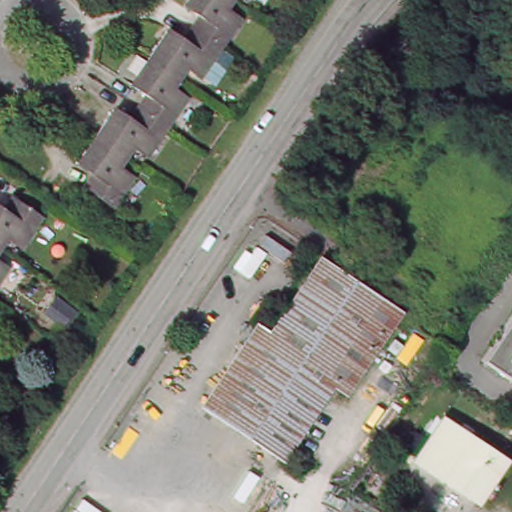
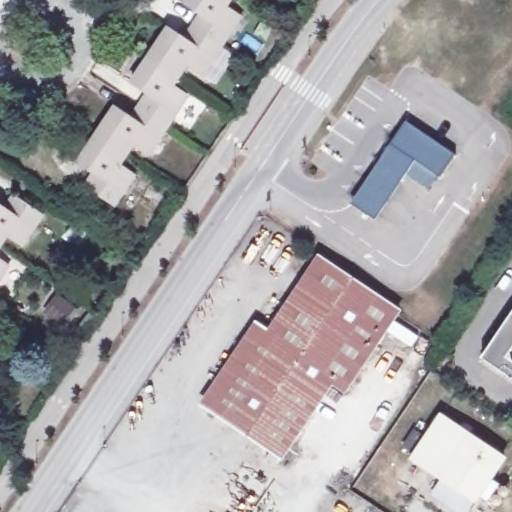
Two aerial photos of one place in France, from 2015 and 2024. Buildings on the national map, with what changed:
unchanged [(204,16),(189,6),(193,0),(244,0),(234,14),(244,23),(229,45),(199,25),(204,16)]
unchanged [(229,45),(207,74),(197,66),(190,76),(157,54),(175,27),(190,37),(199,25),(229,45)]
unchanged [(144,103),(152,91),(138,82),(157,54),(190,76),(180,89),(191,97),(174,122),(144,103)]
unchanged [(120,107),(134,117),(144,103),(174,122),(152,152),(142,144),(136,152),(130,147),(105,131),(120,107)]
new [(407,121),(455,155),(440,179),(415,161),(375,221),(351,205),(407,121)]
unchanged [(123,170),(135,178),(117,202),(88,183),(97,171),(83,162),(105,131),(130,147),(136,152),(123,170)]
unchanged [(0,244),(0,209),(5,212),(13,201),(40,218),(22,246),(11,238),(5,247),(0,244)]
unchanged [(5,247),(0,255),(0,244),(5,247)]
unchanged [(345,390),(334,381),(284,457),(210,408),(260,332),(269,337),(317,263),(394,314),(345,390)]
unchanged [(5,272),(0,278),(0,269),(5,272)]
unchanged [(512,321),(512,377),(485,358),(512,321)]
unchanged [(478,502),(413,460),(443,416),(507,457),(478,502)]

